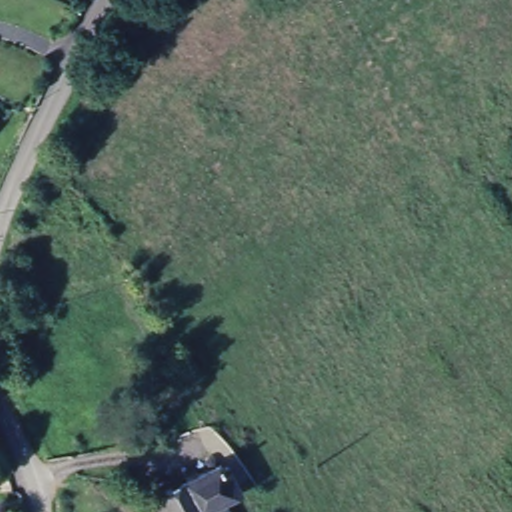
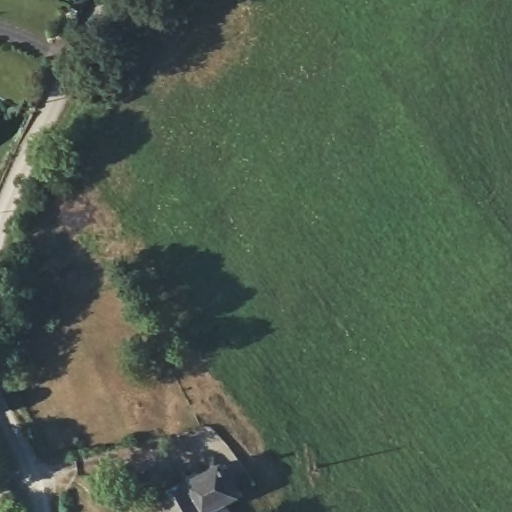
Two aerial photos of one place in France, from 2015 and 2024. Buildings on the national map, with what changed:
unchanged [(211,453),(237,490),(225,498),(234,512),(145,512),(141,505),(149,499),(206,464),(202,459),(211,453)]

